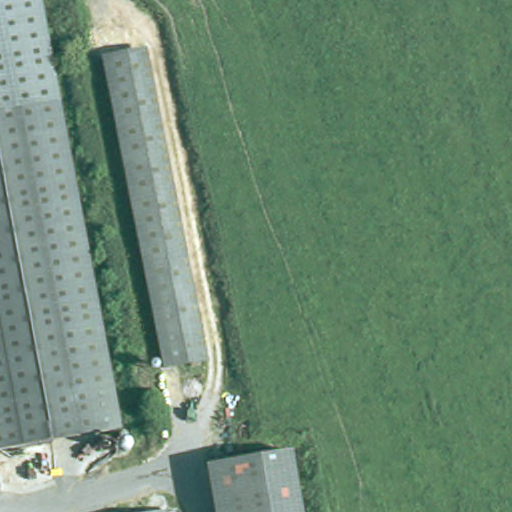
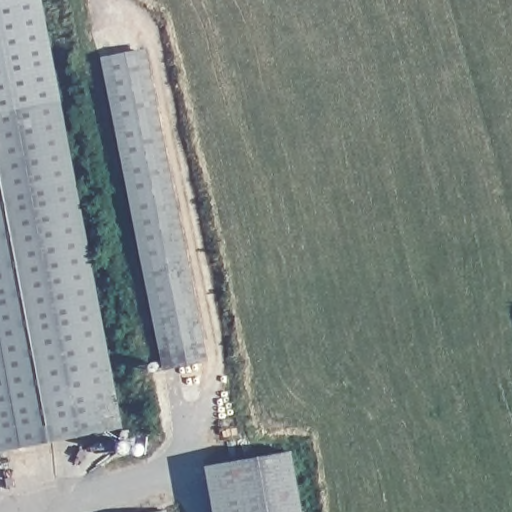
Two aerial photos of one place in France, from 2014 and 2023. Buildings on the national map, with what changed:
unchanged [(44,0),(121,426),(0,450),(0,0),(44,0)]
unchanged [(100,50),(147,43),(208,363),(162,372),(100,50)]
unchanged [(206,465),(293,450),(304,512),(215,512),(206,465)]

